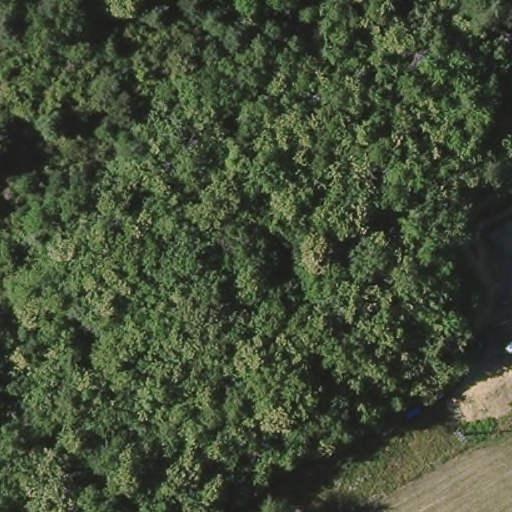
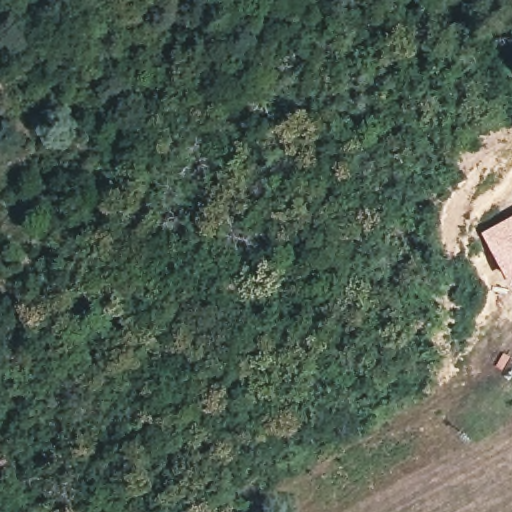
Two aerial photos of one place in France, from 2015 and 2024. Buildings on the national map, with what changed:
new [(512,215),(512,284),(510,285),(481,232),(512,215)]

